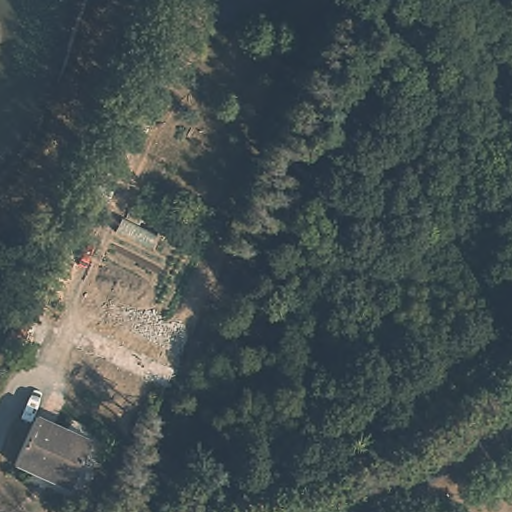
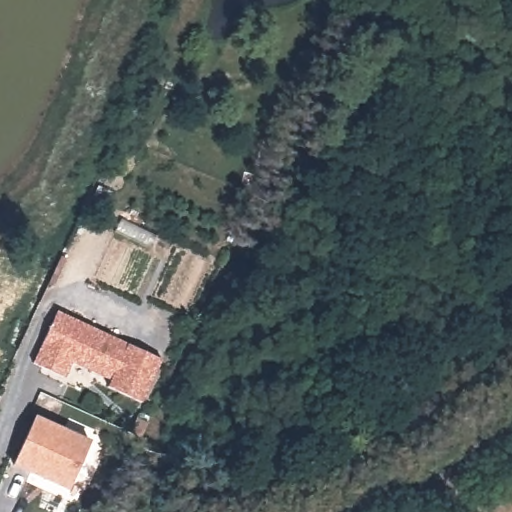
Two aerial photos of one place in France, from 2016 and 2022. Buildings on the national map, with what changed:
unchanged [(67,258),(45,305),(40,302),(62,255),(67,258)]
new [(57,310),(163,360),(142,404),(107,387),(110,381),(73,364),(67,378),(34,364),(57,310)]
unchanged [(10,342),(20,319),(30,324),(20,346),(10,342)]
demolished [(157,382),(68,342),(76,323),(165,363),(157,382)]
unchanged [(36,417),(90,441),(69,489),(14,465),(36,417)]
unchanged [(148,422),(141,437),(131,432),(137,417),(148,422)]

